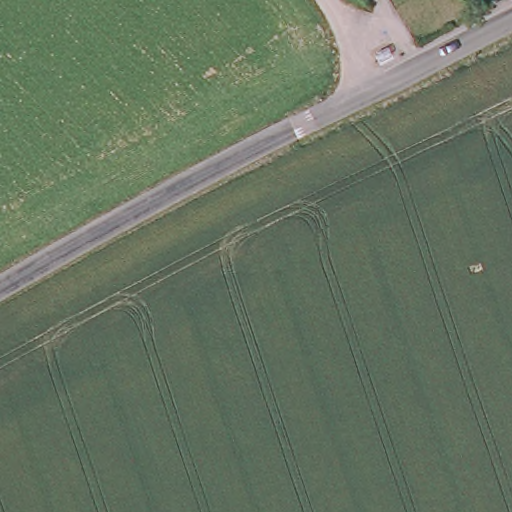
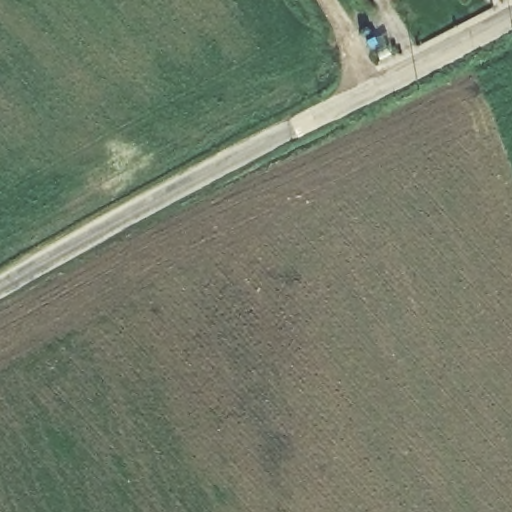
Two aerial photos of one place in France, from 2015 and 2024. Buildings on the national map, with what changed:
[]

